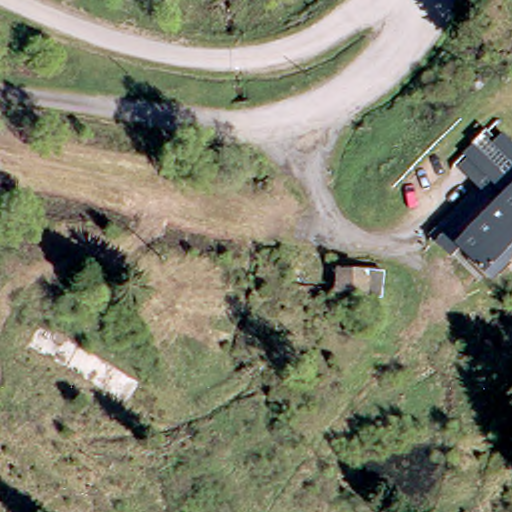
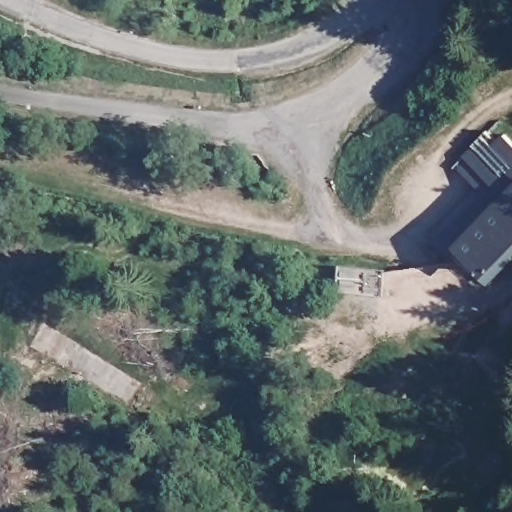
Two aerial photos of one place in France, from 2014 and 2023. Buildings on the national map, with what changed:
unchanged [(459,256),(440,238),(482,188),(457,165),(466,155),(488,129),(498,138),(504,132),(512,140),(512,254),(497,272),(492,268),(483,278),(459,256)]
unchanged [(345,266),(375,272),(393,275),(389,303),(340,294),(344,270),(345,266)]

